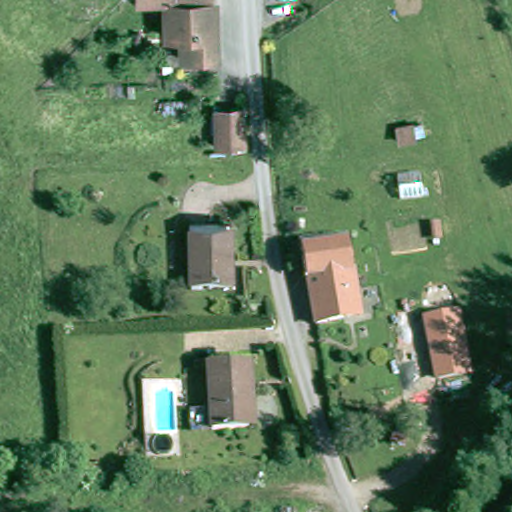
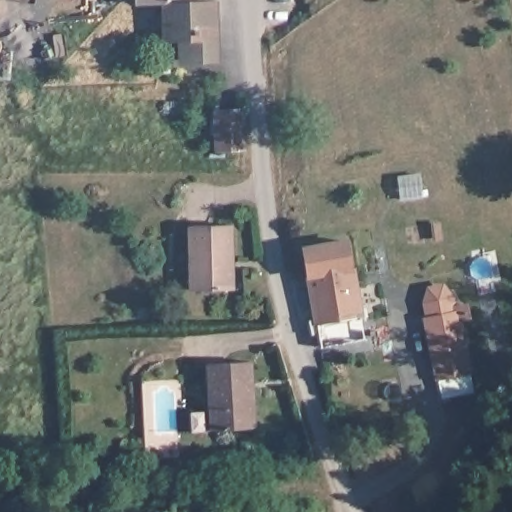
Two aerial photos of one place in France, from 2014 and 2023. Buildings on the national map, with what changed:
unchanged [(170,7),(141,7),(141,0),(218,0),(218,7),(170,7)]
unchanged [(400,1),(402,0),(421,0),(424,7),(406,15),(400,1)]
unchanged [(220,7),(222,66),(188,67),(187,42),(171,42),(170,7),(218,7),(220,7)]
unchanged [(218,149),(217,113),(242,113),(243,148),(218,149)]
unchanged [(190,227),(226,226),(232,226),(233,290),(228,290),(192,291),(190,227)]
unchanged [(348,241),(360,315),(317,324),(305,249),(348,241)]
unchanged [(460,309),(473,374),(435,382),(422,317),(460,309)]
unchanged [(245,362),(249,428),(212,430),(208,365),(245,362)]

